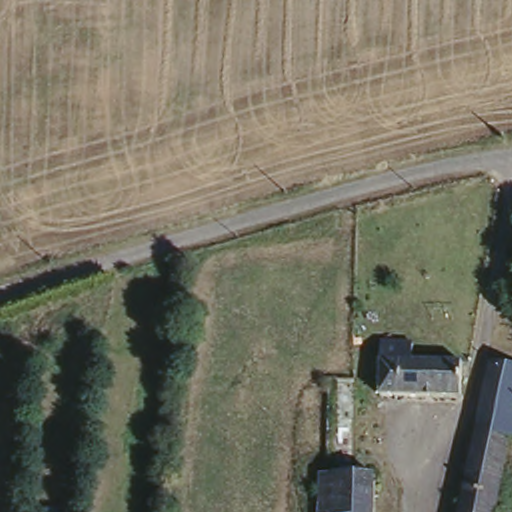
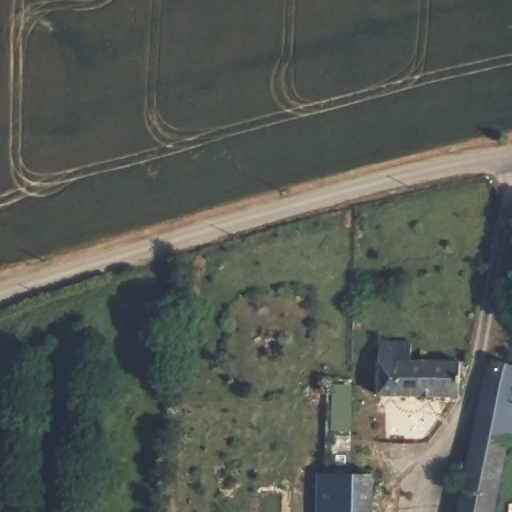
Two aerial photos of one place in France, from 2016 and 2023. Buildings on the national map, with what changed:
unchanged [(413,340),(413,356),(462,356),(460,393),(357,389),(358,351),(377,350),(378,338),(383,339),(413,340)]
unchanged [(512,430),(508,430),(500,475),(493,512),(452,512),(474,392),(483,350),(512,356),(512,430)]
unchanged [(340,458),(372,460),(371,512),(316,512),(316,470),(322,469),(324,372),(334,372),(335,351),(340,351),(340,458)]

